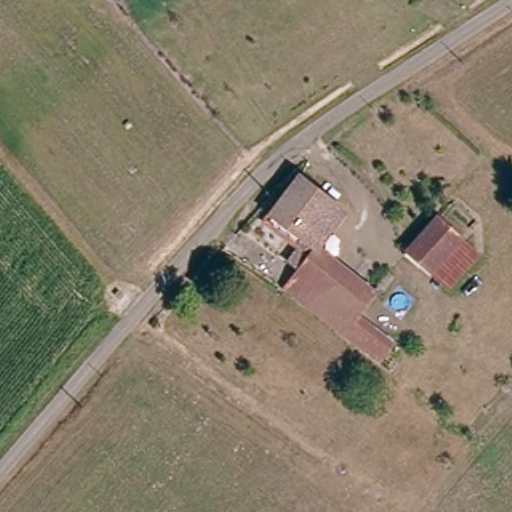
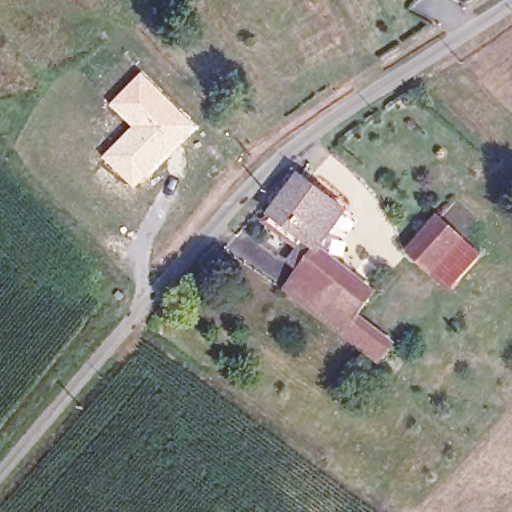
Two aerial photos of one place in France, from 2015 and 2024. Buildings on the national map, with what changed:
new [(131,127),(109,104),(142,72),(199,126),(135,187),(102,156),(131,127)]
unchanged [(363,295),(351,309),(335,330),(317,316),(286,289),(301,273),(293,264),(308,246),(275,219),(307,180),(345,214),(316,251),(349,281),(376,255),(387,270),(363,295)]
unchanged [(409,251),(456,198),(483,219),(470,236),(487,252),(451,292),(409,251)]
unchanged [(351,309),(383,338),(367,357),(335,330),(351,309)]

